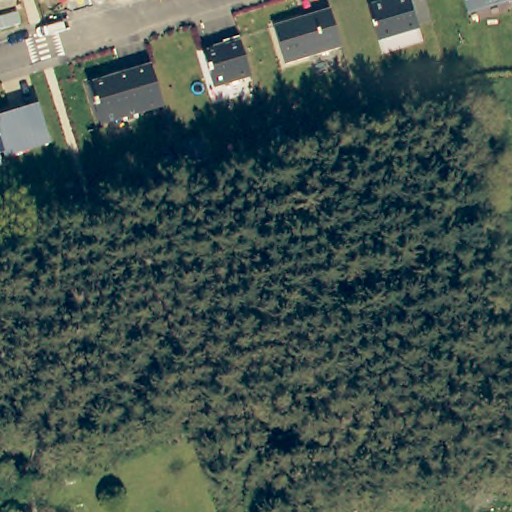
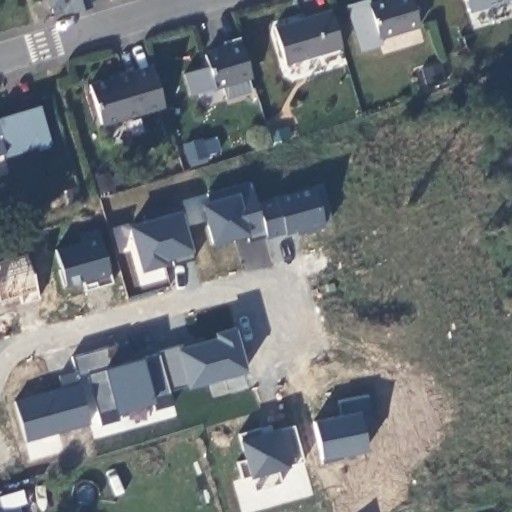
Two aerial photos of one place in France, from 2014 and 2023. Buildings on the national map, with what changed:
unchanged [(92,8),(71,14),(65,16),(64,13),(64,12),(53,16),(51,8),(48,8),(48,6),(47,0),(90,0),(92,8)]
unchanged [(378,38),(371,14),(368,6),(387,0),(411,0),(411,2),(419,26),(378,38)]
unchanged [(468,11),(465,0),(504,0),(468,11)]
unchanged [(511,0),(512,0),(512,1),(511,1),(511,0)]
unchanged [(286,65),(275,26),(330,10),(342,48),(286,65)]
unchanged [(214,89),(203,50),(239,38),(252,78),(214,89)]
unchanged [(101,124),(95,103),(89,85),(152,66),(157,83),(163,105),(101,124)]
unchanged [(6,156),(4,150),(0,152),(0,115),(39,103),(52,144),(6,156)]
new [(232,237),(213,243),(201,205),(209,202),(206,194),(250,181),(256,203),(266,237),(248,241),(247,237),(234,241),(232,237)]
new [(323,183),(331,220),(323,222),(324,225),(306,230),(306,227),(285,233),(285,232),(266,237),(256,203),(323,183)]
new [(145,223),(143,216),(179,206),(195,260),(174,266),(171,257),(163,259),(164,264),(143,270),(130,228),(145,223)]
new [(85,287),(83,282),(64,288),(60,271),(61,271),(56,252),(82,243),(80,235),(98,230),(113,284),(98,288),(87,292),(85,287)]
new [(27,255),(40,299),(22,304),(19,296),(0,302),(0,263),(27,255)]
new [(203,338),(204,343),(219,339),(217,334),(235,329),(247,370),(171,391),(160,353),(159,351),(179,345),(203,338)]
new [(118,344),(124,364),(160,353),(171,391),(174,405),(156,410),(153,400),(118,411),(121,420),(101,425),(88,376),(78,379),(76,373),(72,358),(108,347),(118,344)]
new [(62,387),(59,377),(76,373),(78,379),(91,424),(26,442),(15,401),(62,387)]
new [(342,415),(337,400),(367,391),(374,427),(364,430),(369,447),(345,453),(346,458),(326,464),(314,423),(342,415)]
new [(238,435),(261,428),(271,425),(272,432),(294,426),(305,462),(277,470),(282,484),(254,492),(250,478),(241,480),(236,462),(245,460),(238,435)]
unchanged [(0,512),(0,491),(6,512),(0,512)]

